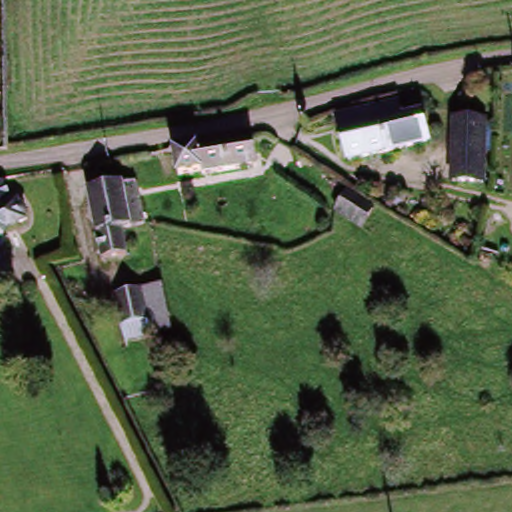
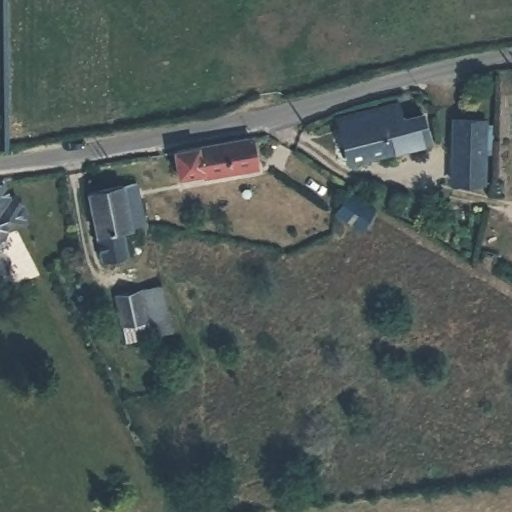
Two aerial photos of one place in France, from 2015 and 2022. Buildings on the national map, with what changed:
unchanged [(397,116),(399,126),(425,124),(427,154),(375,161),(370,120),(397,116)]
unchanged [(370,120),(375,161),(340,165),(337,125),(370,120)]
unchanged [(486,184),(459,183),(460,174),(463,122),(490,123),(487,179),(486,184)]
unchanged [(216,171),(215,161),(187,166),(183,145),(254,133),(259,164),(216,171)]
unchanged [(0,250),(0,184),(6,183),(9,193),(23,190),(29,214),(5,218),(10,248),(0,250)]
unchanged [(97,237),(93,217),(89,189),(100,187),(110,186),(130,183),(137,210),(115,214),(119,232),(97,237)]
unchanged [(347,199),(374,221),(365,233),(337,214),(347,199)]
unchanged [(163,280),(172,330),(121,340),(112,292),(163,280)]

